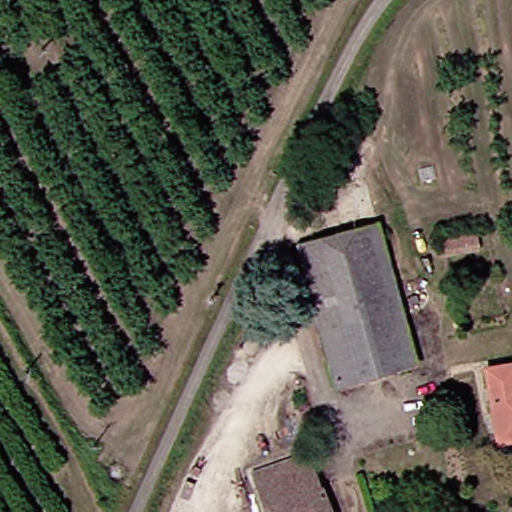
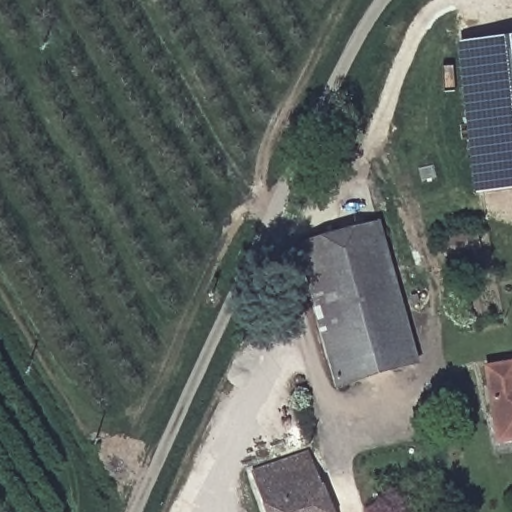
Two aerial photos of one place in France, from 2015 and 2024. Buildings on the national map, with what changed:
new [(456,42),(512,37),(512,190),(473,193),(456,42)]
unchanged [(329,348),(301,241),(379,222),(405,327),(329,348)]
new [(479,234),(481,251),(448,257),(445,239),(479,234)]
unchanged [(414,368),(337,387),(329,348),(405,327),(414,368)]
unchanged [(512,367),(512,428),(502,429),(486,373),(512,367)]
unchanged [(329,465),(314,472),(327,512),(267,512),(257,483),(275,473),(272,464),(305,450),(321,444),(329,465)]

